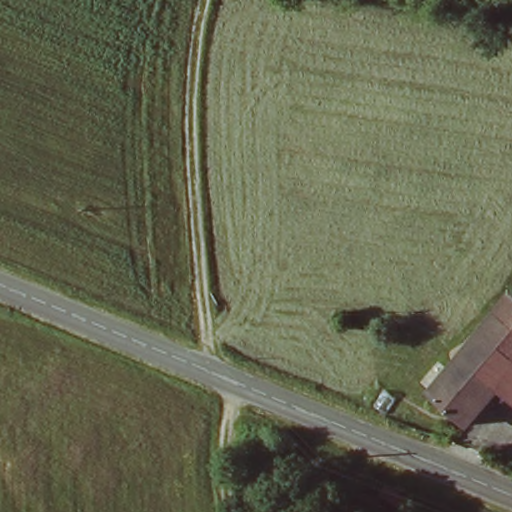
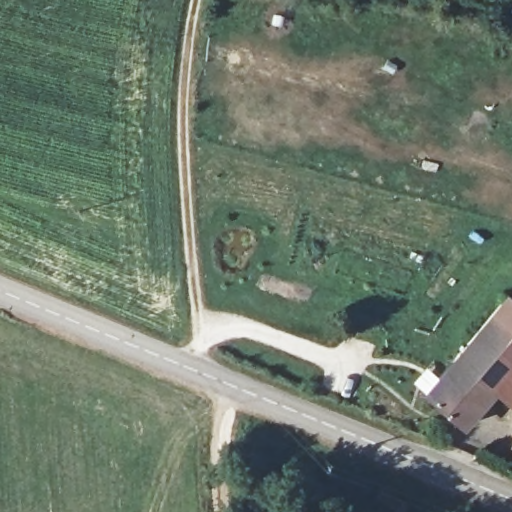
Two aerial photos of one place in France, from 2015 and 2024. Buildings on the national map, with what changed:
unchanged [(462,424),(421,388),(471,338),(496,313),(510,299),(512,301),(512,406),(493,393),(462,424)]

